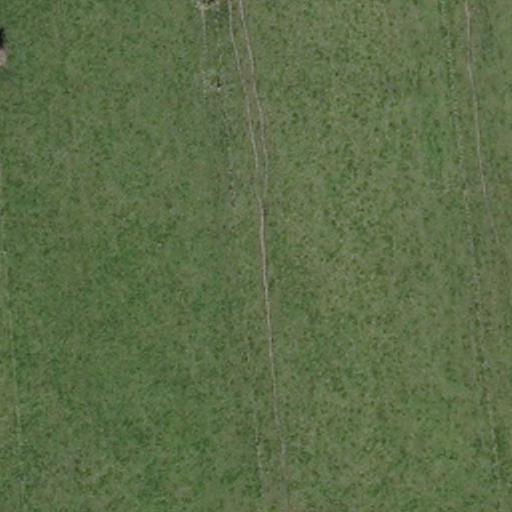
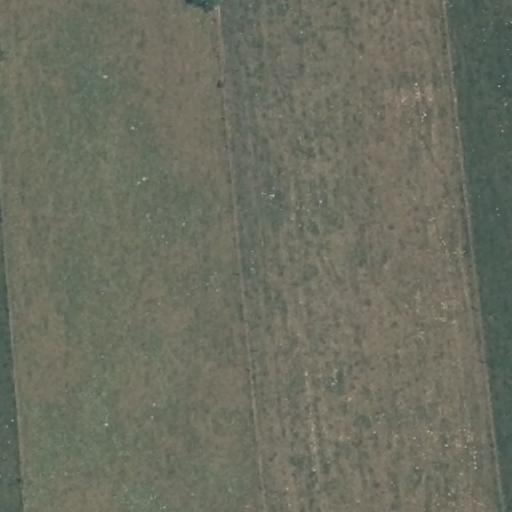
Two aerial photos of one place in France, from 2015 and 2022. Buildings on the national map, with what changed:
[]

